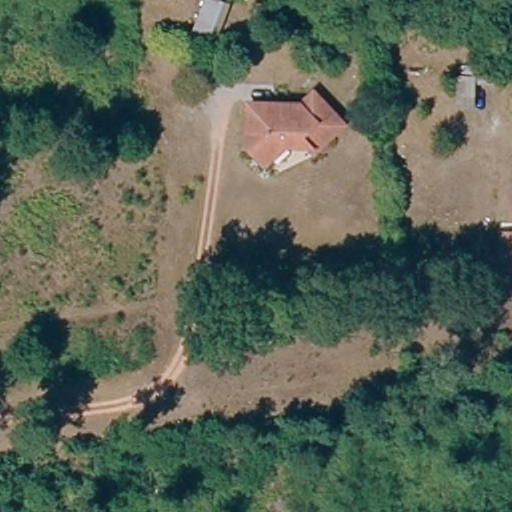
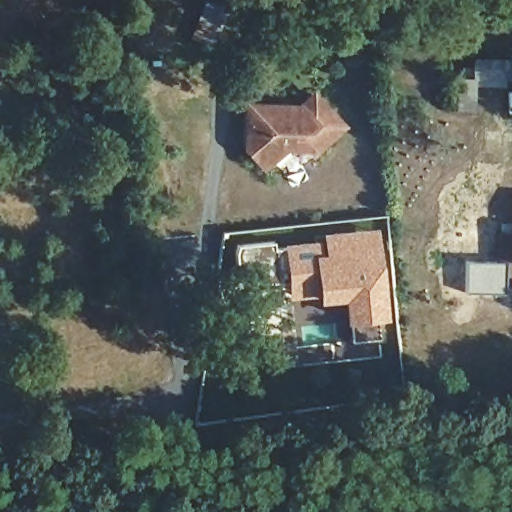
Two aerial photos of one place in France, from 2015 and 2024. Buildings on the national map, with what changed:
new [(224,0),(231,2),(224,23),(216,41),(196,34),(203,16),(209,0),(224,0)]
unchanged [(476,75),(476,60),(512,61),(512,78),(480,79),(480,112),(455,111),(458,77),(476,75)]
unchanged [(317,98),(347,129),(316,159),(303,151),(290,153),(273,171),(251,150),(254,118),(255,107),(286,107),(307,108),(317,98)]
new [(320,238),(320,232),(378,227),(387,320),(380,321),(381,340),(350,343),(348,323),(345,324),(342,301),(317,303),(316,298),(289,300),(283,243),(320,238)]
unchanged [(511,238),(512,238),(512,276),(511,276),(511,238)]
new [(466,260),(506,261),(506,264),(510,264),(506,293),(466,293),(466,260)]

